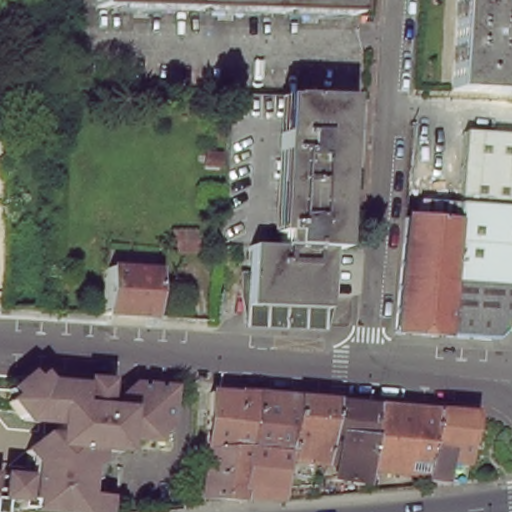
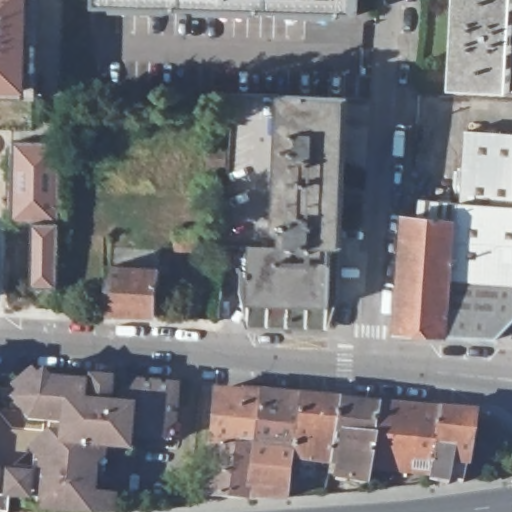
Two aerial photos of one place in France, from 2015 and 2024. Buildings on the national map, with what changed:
new [(18,31),(10,32),(9,62),(17,62),(16,112),(7,112),(7,126),(0,125),(0,0),(18,0),(18,31)]
unchanged [(352,11),(92,2),(93,0),(353,0),(352,11)]
unchanged [(510,32),(512,32),(512,48),(509,48),(507,92),(448,90),(453,0),(512,0),(510,32)]
unchanged [(322,330),(241,325),(244,248),(277,250),(283,99),(310,100),(310,91),(323,91),(323,101),(332,101),(322,330)]
unchanged [(419,197),(460,201),(467,128),(512,132),(512,323),(497,338),(447,336),(458,216),(418,212),(419,197)]
new [(12,143),(59,145),(55,291),(28,290),(30,225),(9,225),(12,143)]
unchanged [(458,216),(447,336),(396,332),(405,217),(417,219),(418,212),(458,216)]
unchanged [(198,252),(175,252),(175,229),(199,229),(198,252)]
unchanged [(110,270),(159,273),(155,318),(107,316),(110,270)]
unchanged [(55,512),(25,510),(26,500),(40,501),(43,463),(33,452),(52,437),(64,438),(65,423),(32,422),(15,402),(43,378),(51,385),(85,387),(83,415),(92,416),(94,383),(112,385),(110,417),(131,419),(132,409),(123,400),(139,387),(177,390),(175,424),(173,441),(164,440),(130,437),(128,451),(118,450),(106,449),(103,480),(95,479),(93,497),(109,498),(108,512),(55,512)]
unchanged [(209,445),(207,445),(212,388),(238,390),(231,445),(209,445)]
unchanged [(245,495),(225,493),(231,445),(238,390),(258,391),(245,472),(247,476),(246,486),(245,495)]
unchanged [(285,490),(246,486),(247,476),(245,472),(258,391),(297,392),(299,392),(290,455),(285,490)]
unchanged [(339,397),(328,460),(290,455),(299,392),(339,397)]
unchanged [(376,401),(366,467),(364,479),(333,475),(335,461),(328,460),(339,397),(376,401)]
unchanged [(376,401),(437,407),(427,472),(366,467),(376,401)]
unchanged [(472,410),(465,462),(462,478),(447,477),(446,482),(427,479),(427,472),(437,407),(472,410)]
unchanged [(231,445),(225,493),(204,492),(209,445),(231,445)]
unchanged [(10,512),(0,512),(0,500),(10,501),(10,512)]

